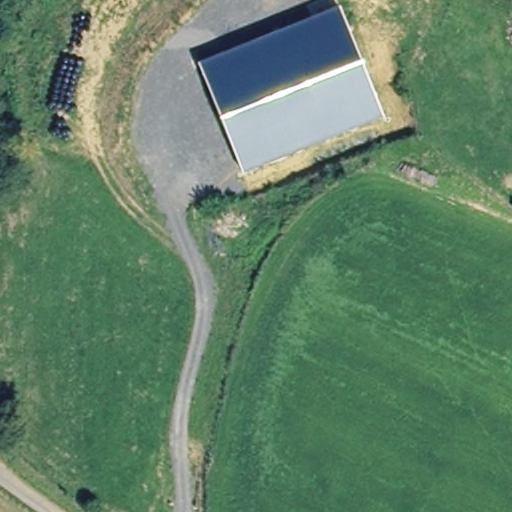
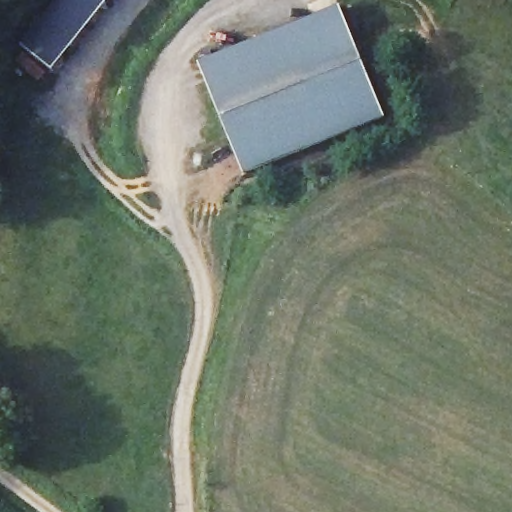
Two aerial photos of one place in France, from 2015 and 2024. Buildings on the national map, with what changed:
new [(22,46),(59,0),(110,0),(53,71),(22,46)]
unchanged [(339,7),(385,118),(243,175),(198,63),(339,7)]

